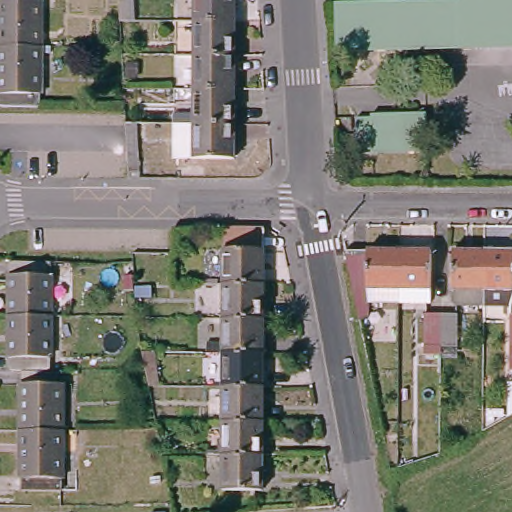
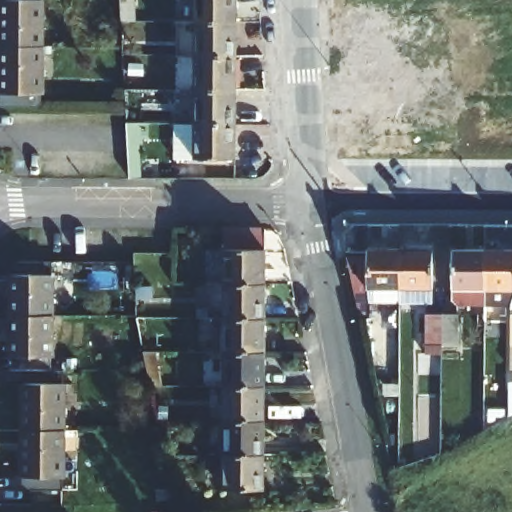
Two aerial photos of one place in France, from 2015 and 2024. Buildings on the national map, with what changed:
unchanged [(0,106),(0,0),(43,0),(42,106),(0,106)]
unchanged [(121,23),(120,0),(132,0),(133,23),(121,23)]
unchanged [(201,0),(237,0),(236,17),(200,18),(201,0)]
demolished [(336,0),(512,0),(512,42),(337,46),(336,0)]
unchanged [(200,51),(200,18),(236,17),(235,50),(200,51)]
unchanged [(233,84),(198,85),(200,51),(235,50),(233,84)]
unchanged [(232,119),(196,119),(198,85),(233,84),(232,119)]
demolished [(361,116),(375,116),(376,113),(430,111),(431,151),(362,153),(361,116)]
unchanged [(231,156),(175,156),(172,119),(196,119),(232,119),(231,156)]
unchanged [(125,125),(142,125),(145,181),(129,181),(126,149),(125,125)]
unchanged [(225,223),(265,222),(263,279),(223,279),(225,223)]
unchanged [(478,282),(478,298),(452,297),(447,292),(447,242),(478,243),(478,282)]
unchanged [(341,244),(362,245),(363,243),(393,243),(393,282),(393,296),(363,296),(363,314),(355,314),(354,314),(348,281),(341,244)]
unchanged [(420,298),(393,297),(393,296),(393,282),(393,243),(425,243),(425,282),(425,298),(420,298)]
unchanged [(510,244),(510,282),(509,282),(505,298),(478,298),(478,282),(478,243),(510,244)]
unchanged [(50,259),(52,363),(59,367),(60,489),(18,489),(16,368),(11,365),(10,260),(50,259)]
unchanged [(263,279),(262,313),(221,313),(223,279),(263,279)]
unchanged [(419,303),(436,303),(451,304),(451,336),(436,336),(436,342),(419,342),(419,303)]
unchanged [(503,304),(512,304),(512,361),(503,361),(503,304)]
unchanged [(262,313),(262,348),(220,348),(221,313),(262,313)]
unchanged [(220,348),(262,348),(260,383),(220,384),(220,348)]
unchanged [(166,395),(152,395),(146,360),(161,360),(166,395)]
unchanged [(512,379),(512,410),(508,412),(508,379),(512,379)]
unchanged [(260,383),(260,415),(218,416),(220,384),(260,383)]
unchanged [(218,416),(260,415),(259,449),(217,450),(218,416)]
unchanged [(259,449),(257,487),(216,485),(217,450),(259,449)]

